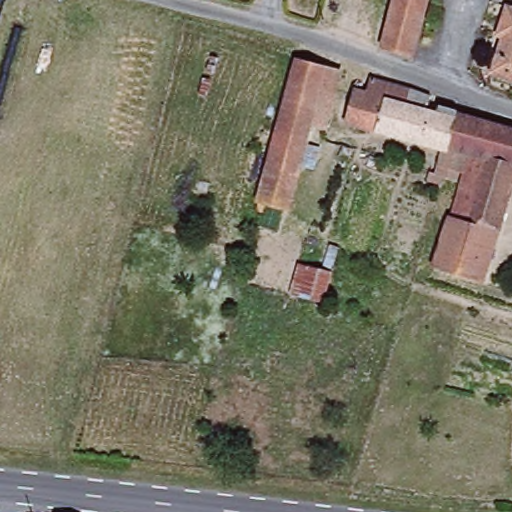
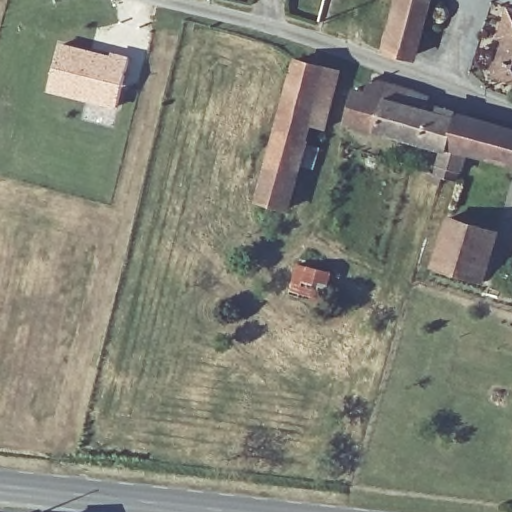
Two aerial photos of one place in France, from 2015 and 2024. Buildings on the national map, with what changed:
demolished [(278,0),(317,0),(313,12),(278,0)]
unchanged [(423,0),(407,59),(379,49),(393,0),(423,0)]
unchanged [(491,76),(501,40),(493,37),(502,11),(512,14),(512,83),(491,76)]
new [(112,52),(128,56),(116,108),(48,94),(60,44),(111,55),(112,52)]
unchanged [(287,60),(336,74),(321,129),(303,125),(284,211),(251,203),(287,60)]
unchanged [(425,98),(423,107),(454,119),(457,109),(512,128),(512,169),(467,155),(462,155),(460,169),(455,170),(452,180),(442,178),(440,186),(431,183),(438,152),(342,125),(351,91),(364,95),(371,79),(425,98)]
unchanged [(483,283),(432,267),(445,217),(452,215),(467,155),(512,169),(512,180),(483,283)]
unchanged [(332,270),(324,300),(291,292),(300,262),(332,270)]

